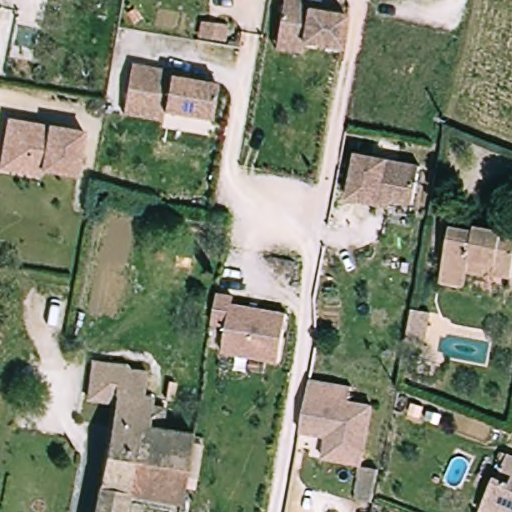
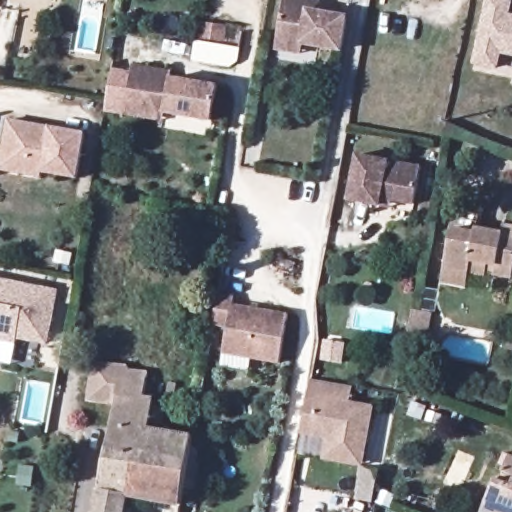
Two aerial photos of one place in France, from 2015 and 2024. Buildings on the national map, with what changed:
unchanged [(276,49),(278,39),(285,0),(310,0),(312,0),(310,11),(349,18),(343,51),(304,44),(303,54),(276,49)]
new [(512,9),(511,14),(512,14),(512,56),(503,55),(499,70),(473,65),(486,0),(512,0),(512,9)]
new [(194,40),(240,46),(238,59),(230,64),(192,58),(194,40)]
unchanged [(124,110),(127,95),(133,60),(173,67),(172,73),(221,81),(215,117),(166,109),(165,116),(124,110)]
unchanged [(3,167),(6,152),(12,117),(89,131),(82,175),(45,169),(44,175),(3,167)]
unchanged [(381,200),(349,195),(354,170),(358,152),(423,162),(419,181),(416,199),(394,195),(393,202),(381,200)]
unchanged [(444,271),(452,232),(475,237),(477,232),(502,236),(504,230),(512,232),(512,282),(493,280),(496,269),(485,267),(481,277),(466,275),(462,288),(442,285),(444,271)]
new [(0,356),(0,275),(57,284),(47,335),(18,330),(17,335),(13,358),(0,356)]
unchanged [(217,293),(233,295),(232,302),(288,310),(280,358),(222,350),(227,324),(212,321),(217,293)]
unchanged [(424,314),(417,346),(399,343),(406,311),(424,314)]
unchanged [(86,410),(92,373),(98,374),(124,375),(128,379),(147,380),(144,396),(143,404),(153,406),(152,413),(164,415),(160,436),(192,440),(180,506),(180,508),(124,500),(122,512),(93,512),(105,454),(112,414),(86,410)]
unchanged [(357,464),(356,464),(326,458),(330,437),(302,432),(312,380),(355,386),(352,402),(375,405),(365,458),(364,465),(357,464)]
unchanged [(509,455),(512,457),(512,475),(502,471),(509,455)]
new [(33,467),(31,485),(17,484),(20,465),(33,467)]
unchanged [(362,466),(381,469),(376,502),(358,500),(362,466)]
unchanged [(494,479),(510,485),(512,481),(512,512),(479,512),(482,505),(494,479)]

